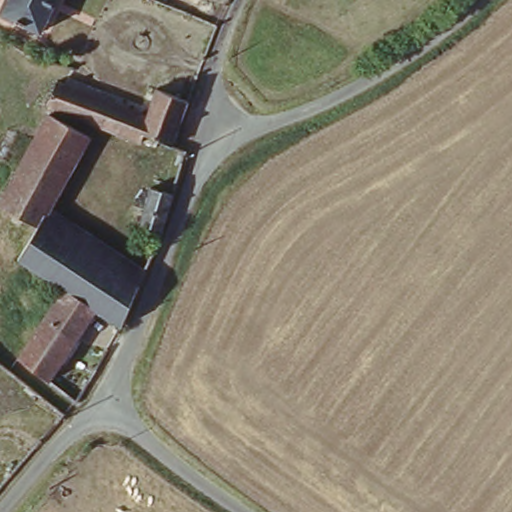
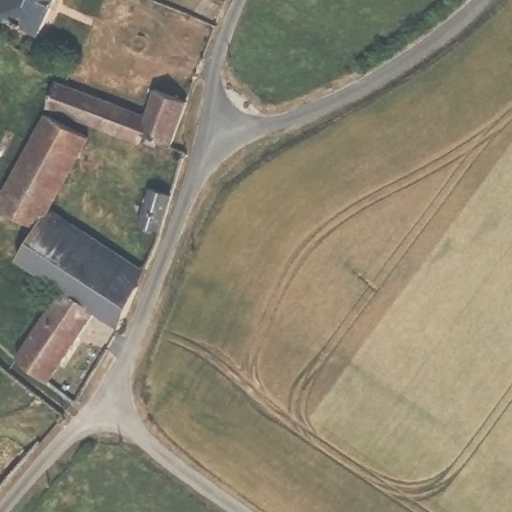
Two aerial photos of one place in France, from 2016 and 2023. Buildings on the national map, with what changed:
unchanged [(0,20),(0,6),(3,0),(56,0),(37,40),(0,20)]
unchanged [(139,134),(135,145),(50,102),(60,80),(146,115),(156,89),(188,102),(173,148),(139,134)]
unchanged [(0,202),(0,199),(46,109),(84,131),(44,207),(36,223),(0,202)]
unchanged [(142,223),(154,186),(173,192),(161,230),(142,223)]
unchanged [(36,223),(44,207),(139,272),(132,285),(36,224),(36,223)]
unchanged [(17,257),(36,224),(132,285),(116,320),(95,306),(61,284),(17,257)]
unchanged [(52,378),(18,354),(61,284),(95,306),(52,378)]

